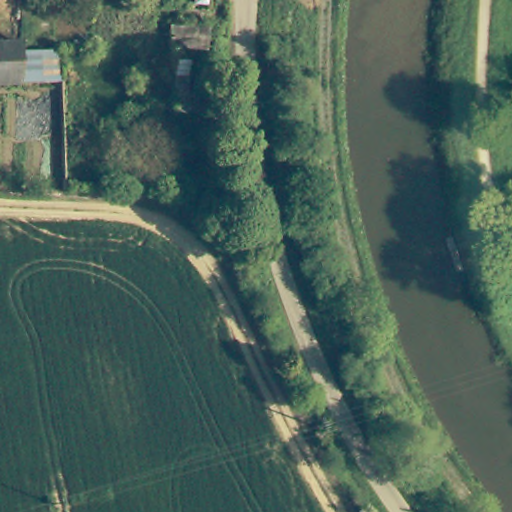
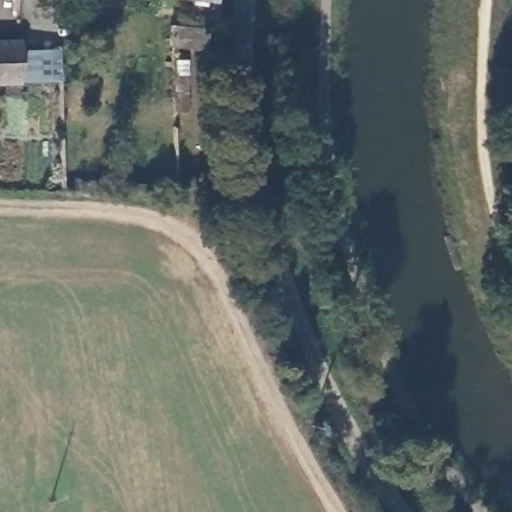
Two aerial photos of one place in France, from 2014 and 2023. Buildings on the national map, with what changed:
unchanged [(21,83),(0,81),(0,35),(25,36),(23,51),(47,51),(46,86),(21,83)]
unchanged [(204,56),(169,55),(171,36),(204,36),(204,56)]

